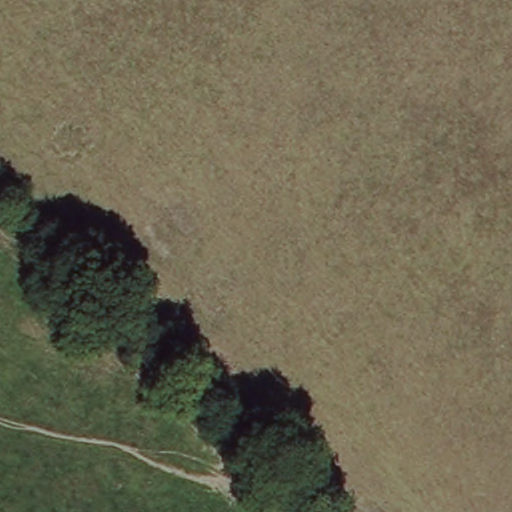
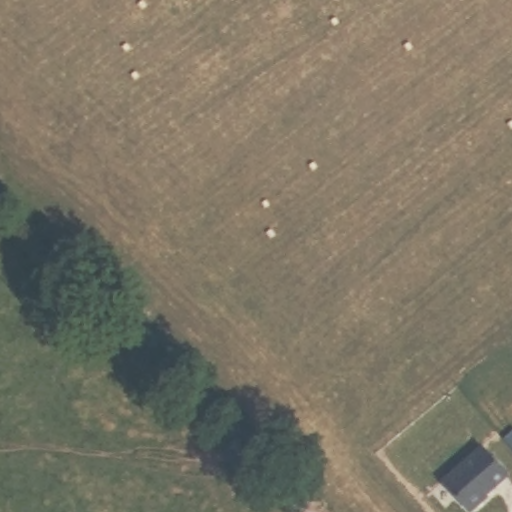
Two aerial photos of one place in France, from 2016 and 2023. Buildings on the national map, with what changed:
new [(477,496),(479,498),(462,512),(461,512),(434,481),(473,447),(500,476),(477,496)]

